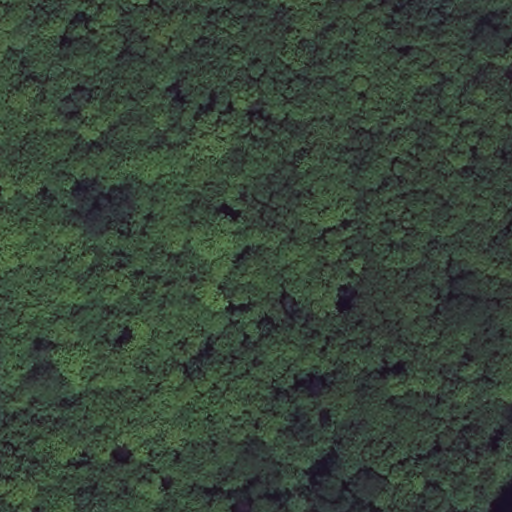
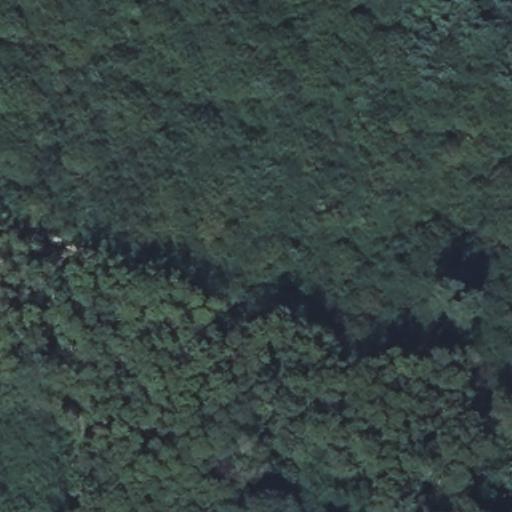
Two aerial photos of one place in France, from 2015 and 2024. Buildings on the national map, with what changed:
[]

